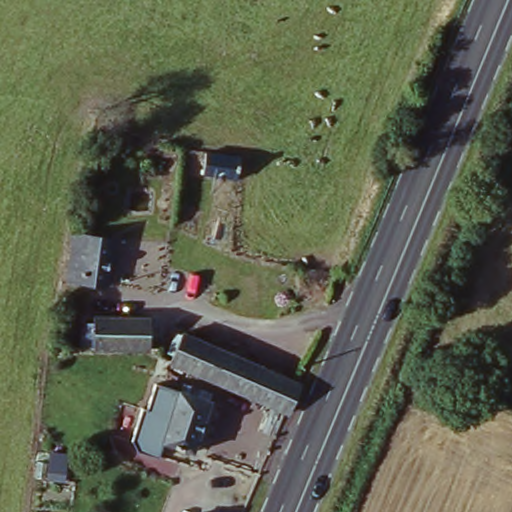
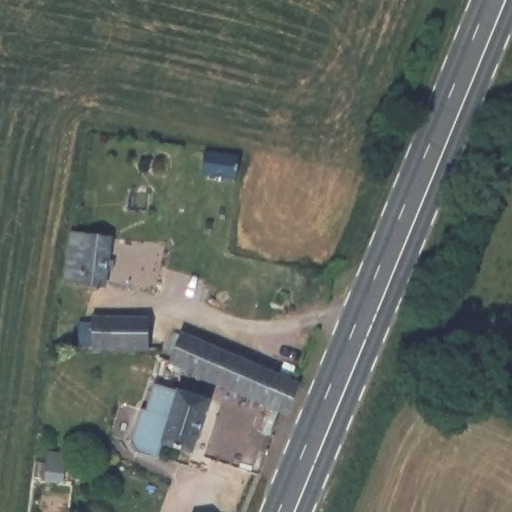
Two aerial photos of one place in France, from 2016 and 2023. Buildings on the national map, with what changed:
unchanged [(234,160),(233,178),(200,177),(201,158),(234,160)]
unchanged [(111,238),(106,282),(71,278),(75,235),(111,238)]
unchanged [(80,351),(79,321),(130,321),(130,352),(80,351)]
unchanged [(283,415),(165,363),(181,335),(296,386),(283,415)]
unchanged [(132,440),(140,407),(147,410),(154,383),(177,390),(210,402),(194,454),(164,444),(158,458),(137,452),(132,440)]

